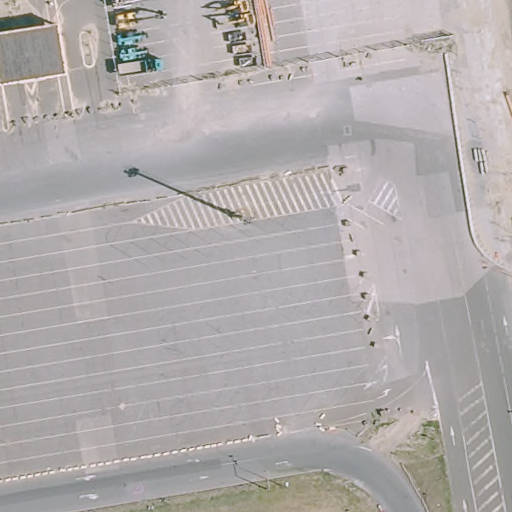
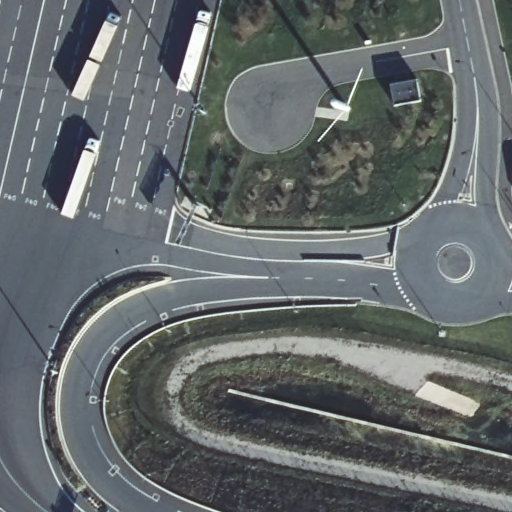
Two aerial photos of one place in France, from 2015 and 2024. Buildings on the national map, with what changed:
demolished [(52,24),(60,74),(0,83),(0,32),(52,24)]
new [(420,104),(395,106),(391,84),(417,81),(420,104)]

